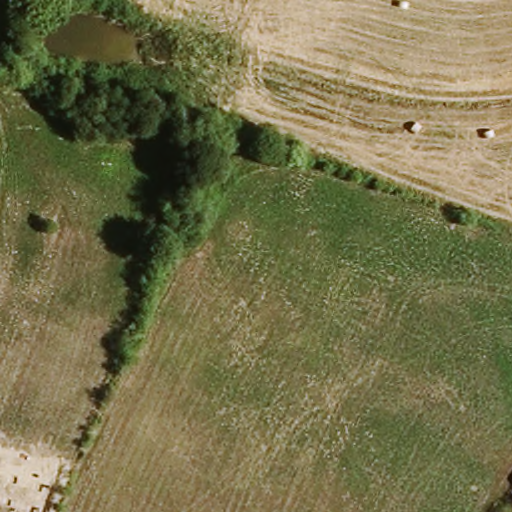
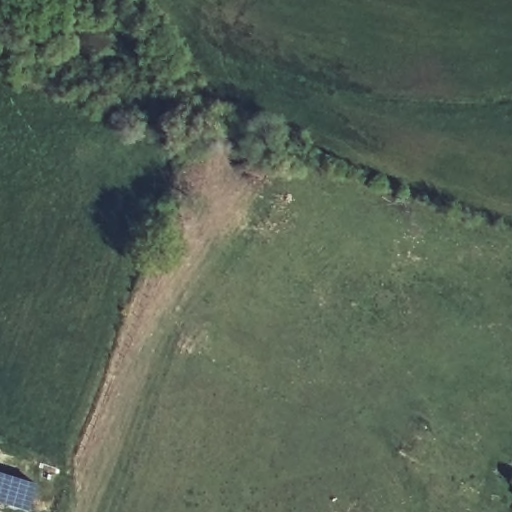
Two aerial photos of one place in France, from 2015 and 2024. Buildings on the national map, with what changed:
new [(0,504),(0,473),(38,486),(30,512),(25,512),(0,504)]

